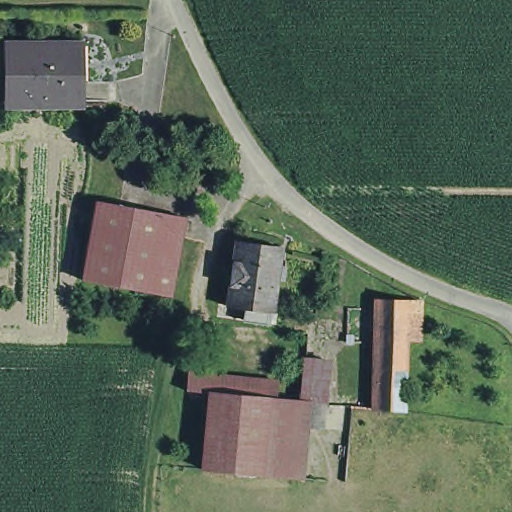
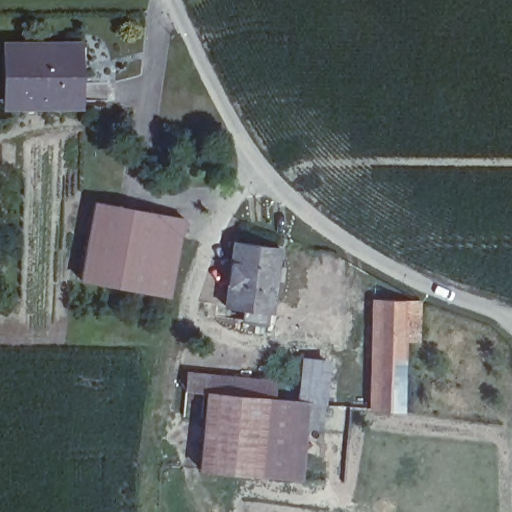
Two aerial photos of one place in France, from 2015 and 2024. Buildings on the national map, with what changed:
unchanged [(78,37),(80,94),(9,95),(7,37),(78,37)]
unchanged [(186,215),(173,292),(81,277),(96,198),(186,215)]
unchanged [(270,238),(265,304),(262,304),(262,315),(237,313),(239,301),(219,299),(227,232),(270,238)]
unchanged [(418,316),(405,315),(402,413),(368,412),(372,300),(420,301),(418,316)]
unchanged [(281,373),(280,396),(307,399),(312,358),(332,360),(328,416),(314,415),(308,476),(205,465),(212,390),(190,389),(192,365),(281,373)]

